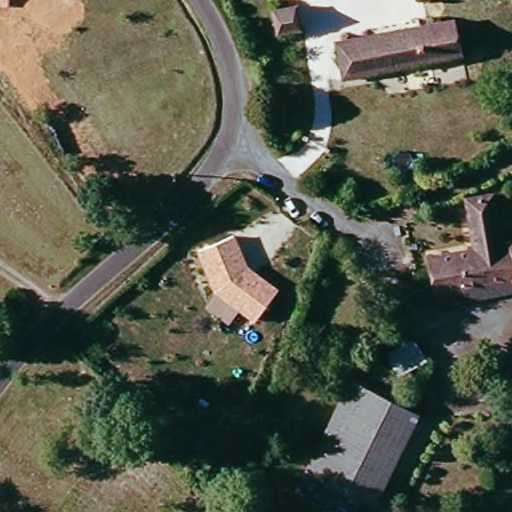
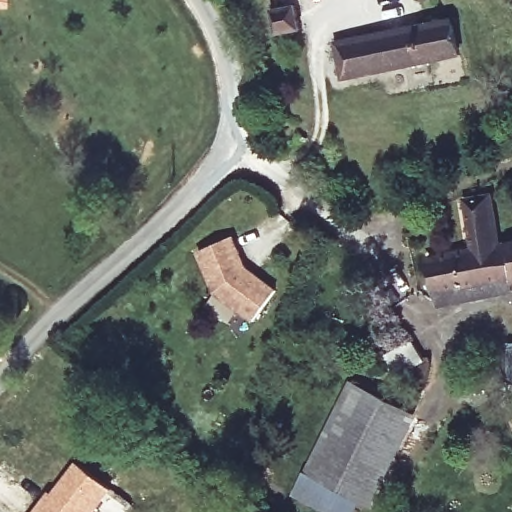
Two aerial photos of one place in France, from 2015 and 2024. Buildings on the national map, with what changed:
unchanged [(422,0),(448,0),(423,5),(422,0)]
unchanged [(297,30),(276,34),(271,10),(294,7),(297,30)]
unchanged [(449,22),(457,58),(376,73),(369,37),(449,22)]
unchanged [(369,37),(376,73),(340,79),(334,45),(369,37)]
unchanged [(511,243),(512,243),(512,281),(510,281),(437,295),(430,257),(475,249),(467,201),(487,197),(491,205),(494,246),(511,243)]
unchanged [(282,291),(260,321),(220,292),(203,253),(238,237),(252,267),(282,291)]
unchanged [(510,281),(512,296),(440,308),(437,295),(510,281)]
unchanged [(413,340),(424,361),(399,376),(386,355),(413,340)]
unchanged [(83,407),(108,380),(117,388),(92,415),(83,407)]
unchanged [(358,504),(304,477),(348,385),(402,411),(358,504)]
new [(49,489),(51,490),(76,460),(114,489),(96,512),(32,512),(49,489)]
unchanged [(354,512),(307,512),(291,505),(304,477),(358,504),(354,512)]

